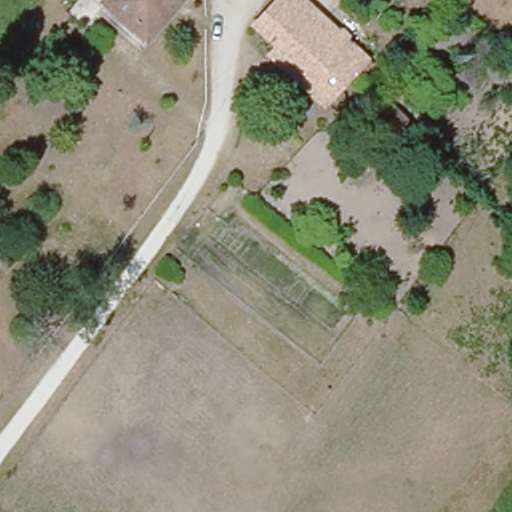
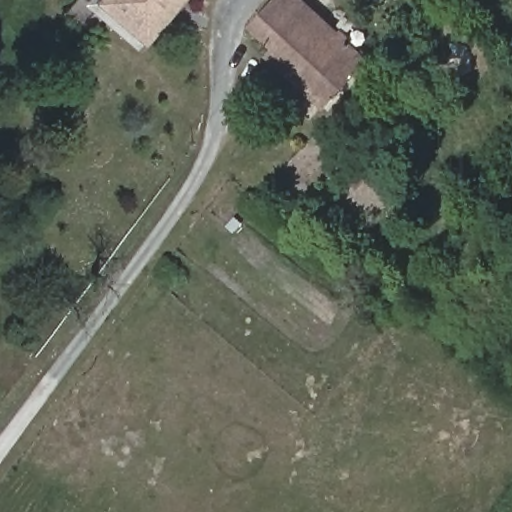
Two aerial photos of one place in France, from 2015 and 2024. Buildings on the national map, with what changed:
unchanged [(101,1),(102,0),(181,0),(146,41),(101,1)]
unchanged [(273,45),(252,25),(274,0),(304,0),(364,54),(327,97),(321,104),(266,54),(273,45)]
unchanged [(410,126),(388,147),(361,121),(383,99),(410,126)]

